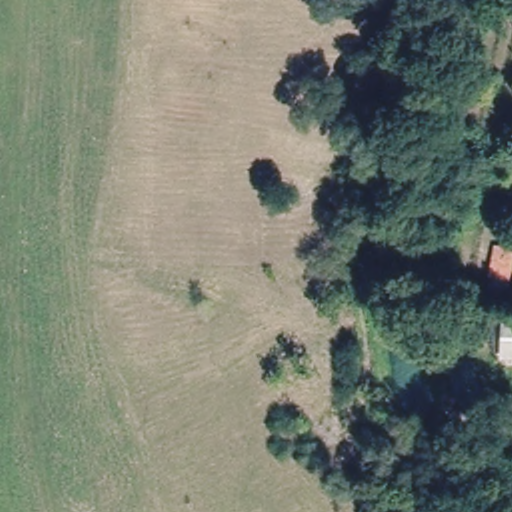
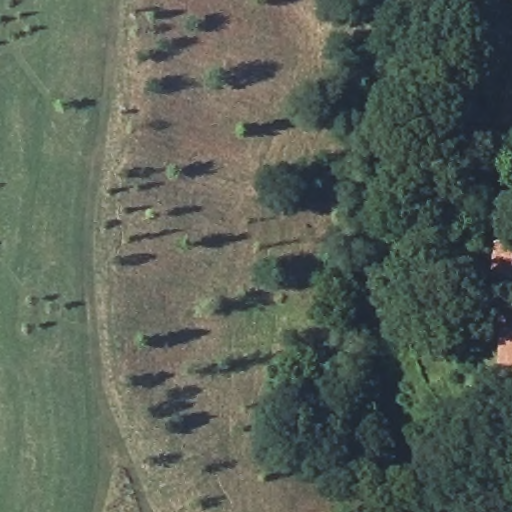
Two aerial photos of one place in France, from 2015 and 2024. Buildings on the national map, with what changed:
unchanged [(510,276),(512,262),(512,277),(510,276)]
unchanged [(503,349),(507,318),(512,319),(512,350),(503,349)]

